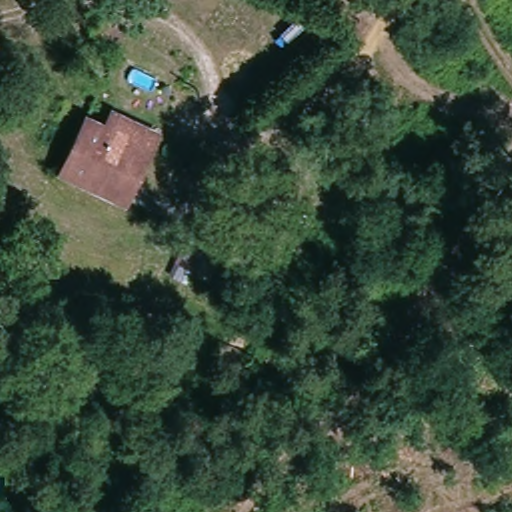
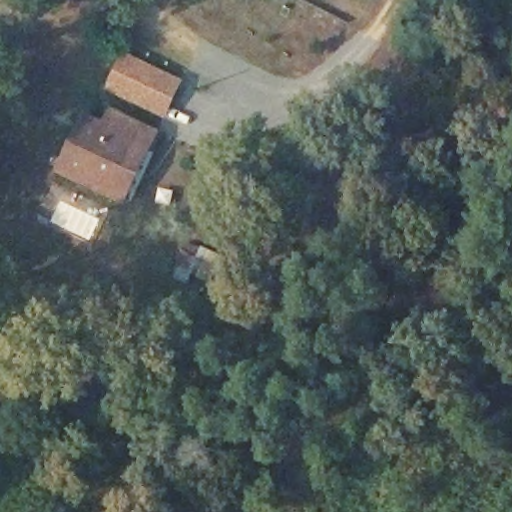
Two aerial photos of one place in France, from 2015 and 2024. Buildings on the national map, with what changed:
new [(104,91),(122,52),(182,80),(163,119),(104,91)]
unchanged [(60,178),(81,129),(94,134),(97,123),(148,141),(121,203),(60,178)]

